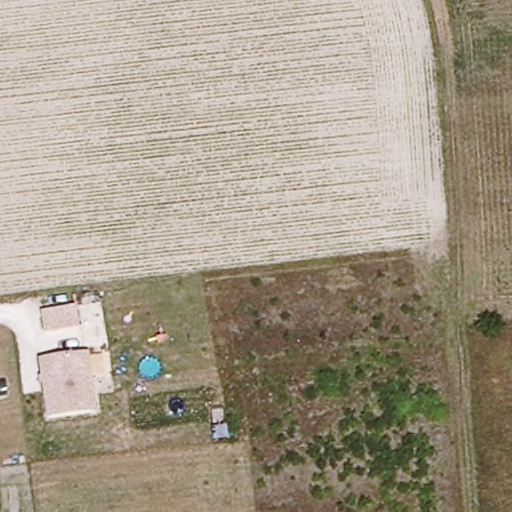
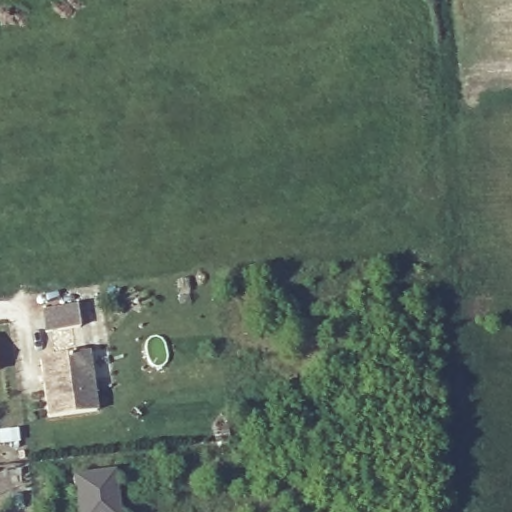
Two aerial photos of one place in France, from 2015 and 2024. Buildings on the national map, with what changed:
unchanged [(75,300),(79,326),(43,333),(40,308),(75,300)]
unchanged [(46,416),(37,353),(89,347),(98,410),(46,416)]
new [(113,470),(118,512),(77,512),(73,474),(113,470)]

